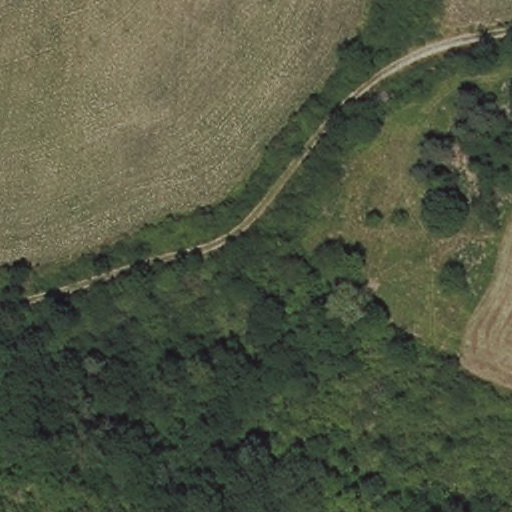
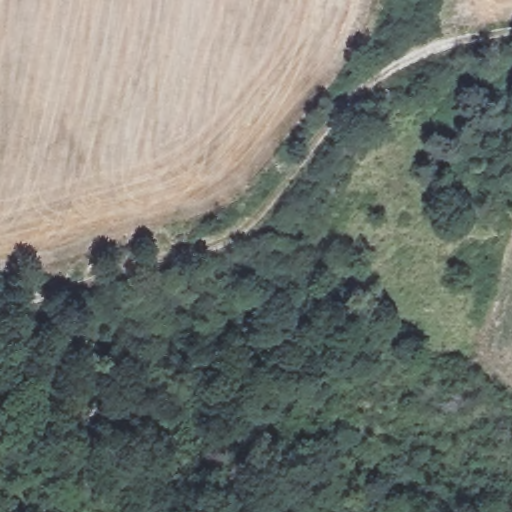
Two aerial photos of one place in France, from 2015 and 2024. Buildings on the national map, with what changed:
[]

